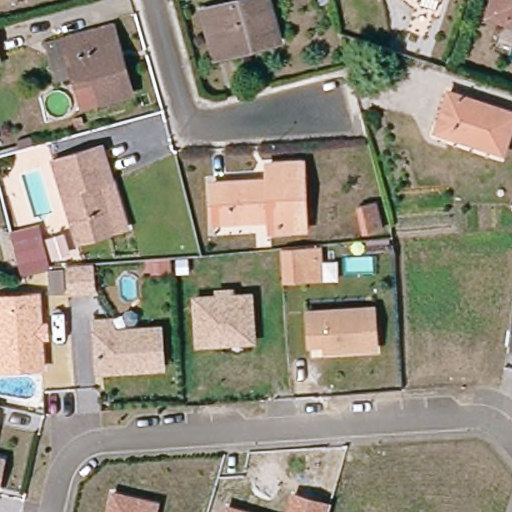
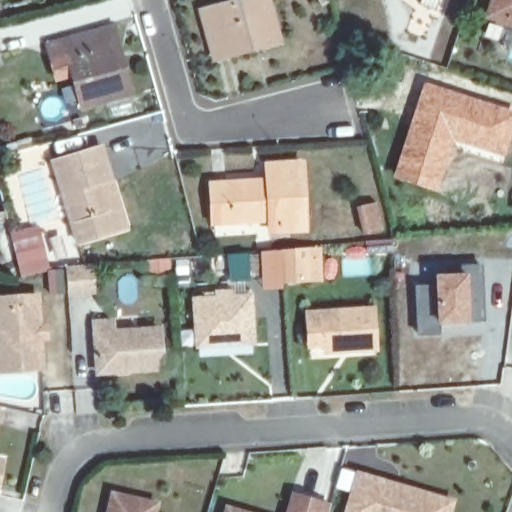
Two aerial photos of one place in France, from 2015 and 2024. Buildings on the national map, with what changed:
unchanged [(204,10),(243,0),(269,0),(280,42),(260,47),(258,41),(231,48),(233,54),(216,58),(204,10)]
unchanged [(426,7),(409,1),(409,0),(428,0),(426,7)]
unchanged [(490,15),(495,0),(512,0),(512,22),(490,15)]
unchanged [(128,81),(133,98),(82,112),(64,45),(115,31),(121,55),(115,56),(123,82),(128,81)]
unchanged [(0,53),(4,68),(0,69),(0,53)]
new [(423,84),(450,92),(438,126),(451,131),(450,136),(455,137),(436,192),(392,177),(423,84)]
unchanged [(503,154),(450,136),(451,131),(438,126),(450,92),(512,113),(512,129),(503,154)]
unchanged [(78,243),(53,160),(102,145),(113,179),(128,228),(115,232),(78,243)]
unchanged [(265,220),(210,222),(208,183),(263,181),(262,163),(298,162),(301,229),(276,230),(276,219),(265,220)]
unchanged [(343,211),(340,199),(371,193),(379,230),(357,235),(352,210),(343,211)]
unchanged [(46,267),(20,269),(11,234),(40,227),(42,237),(39,238),(46,267)]
unchanged [(281,249),(321,247),(322,281),(282,282),(281,249)]
unchanged [(163,271),(147,272),(146,261),(162,260),(163,271)]
new [(450,273),(450,266),(481,264),(486,322),(470,323),(441,326),(441,334),(416,336),(415,286),(434,281),(434,274),(450,273)]
unchanged [(93,294),(67,295),(66,269),(91,268),(93,294)]
unchanged [(64,279),(52,280),(51,270),(63,269),(64,279)]
unchanged [(0,295),(38,292),(40,322),(46,321),(47,334),(41,334),(43,365),(0,368),(0,295)]
unchanged [(193,301),(204,300),(249,298),(251,343),(219,345),(195,346),(193,301)]
unchanged [(378,346),(327,349),(327,341),(312,342),(310,310),(376,306),(378,346)]
unchanged [(159,368),(95,373),(91,322),(109,321),(110,333),(156,329),(159,368)]
unchanged [(0,476),(0,461),(3,461),(0,476)]
new [(452,512),(343,512),(355,468),(455,499),(452,512)]
unchanged [(159,504),(157,512),(111,512),(115,494),(159,504)]
unchanged [(310,501),(326,506),(325,510),(325,511),(325,512),(285,512),(290,495),(310,501)]
unchanged [(235,512),(222,512),(224,508),(235,512)]

